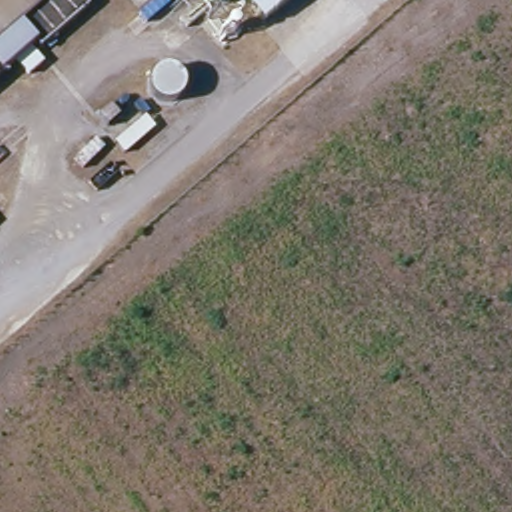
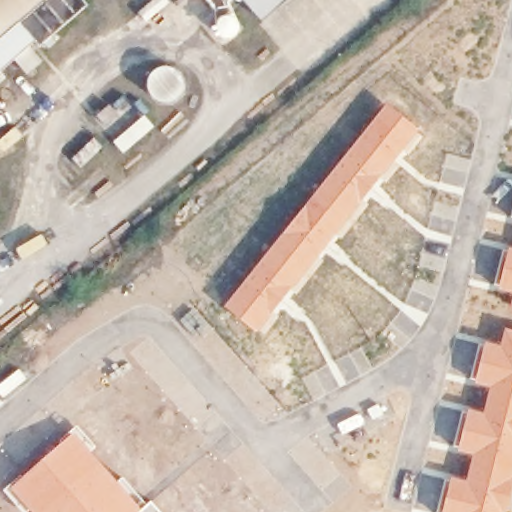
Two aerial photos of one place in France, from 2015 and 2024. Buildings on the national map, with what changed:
unchanged [(0,74),(0,0),(84,0),(85,2),(0,74)]
unchanged [(247,0),(279,0),(260,16),(247,0)]
unchanged [(180,8),(186,3),(193,3),(199,8),(199,15),(198,22),(191,28),(184,27),(179,16),(180,8)]
new [(387,103),(420,130),(257,333),(224,306),(387,103)]
new [(499,289),(510,247),(512,248),(512,293),(499,289)]
new [(511,311),(512,307),(512,311),(511,311)]
new [(501,345),(505,327),(512,329),(512,490),(506,512),(443,512),(452,477),(467,481),(472,454),(458,451),(469,409),(484,413),(490,387),(476,384),(486,342),(501,345)]
new [(30,510),(28,512),(23,512),(4,489),(21,475),(22,477),(63,442),(61,439),(77,426),(96,448),(92,451),(118,482),(123,477),(147,505),(151,501),(161,512),(32,512),(30,510)]

